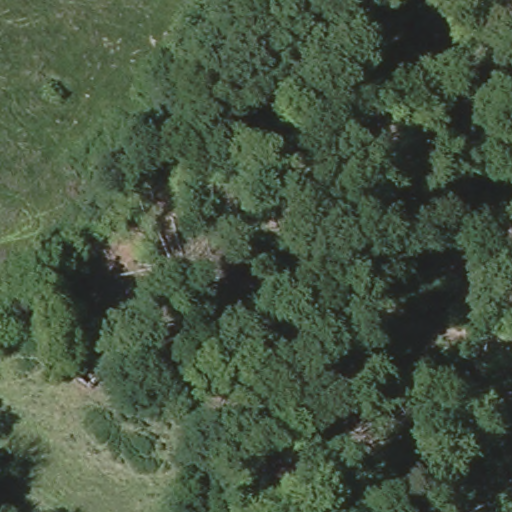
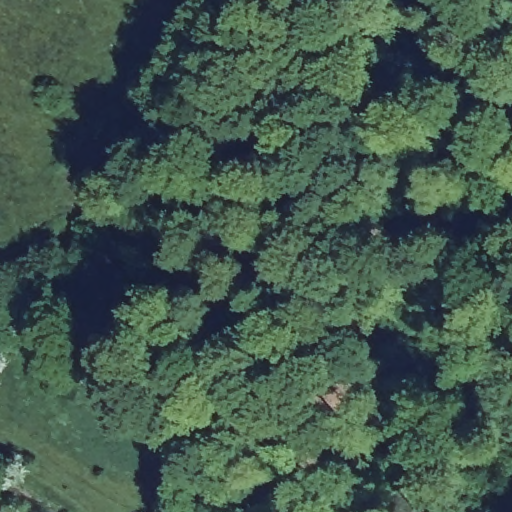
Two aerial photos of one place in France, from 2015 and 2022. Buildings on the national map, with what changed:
unchanged [(105,373),(90,390),(70,372),(85,355),(105,373)]

